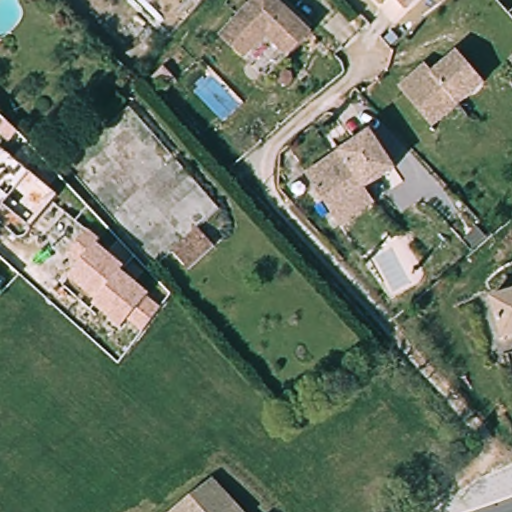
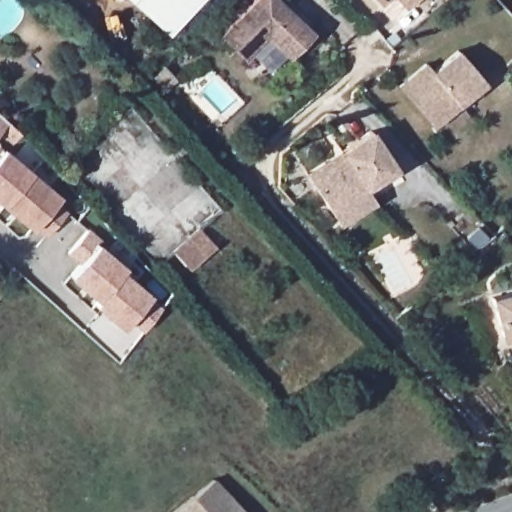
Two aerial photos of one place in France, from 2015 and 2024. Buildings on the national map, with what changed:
new [(129,0),(201,0),(169,36),(129,0)]
unchanged [(279,0),(318,41),(295,64),(270,40),(245,65),(225,41),(265,0),(279,0)]
unchanged [(512,1),(512,21),(501,10),(511,1),(512,1)]
unchanged [(430,66),(436,76),(463,54),(487,82),(436,128),(404,89),(430,66)]
unchanged [(512,57),(512,68),(506,63),(512,57)]
unchanged [(0,130),(0,113),(17,129),(34,148),(28,156),(8,139),(0,130)]
unchanged [(348,230),(340,220),(320,195),(306,179),(346,147),(367,131),(397,167),(370,188),(375,194),(383,203),(348,230)]
new [(4,150),(59,197),(55,202),(66,214),(45,238),(33,227),(30,231),(0,205),(0,154),(4,150)]
unchanged [(168,252),(195,228),(211,246),(185,270),(168,252)]
unchanged [(102,243),(98,243),(127,269),(123,275),(149,294),(160,310),(142,333),(131,318),(121,330),(93,308),(97,301),(71,280),(85,263),(69,256),(87,231),(102,243)]
unchanged [(512,338),(510,339),(498,300),(512,295),(512,338)]
unchanged [(214,482),(242,512),(171,512),(214,482)]

